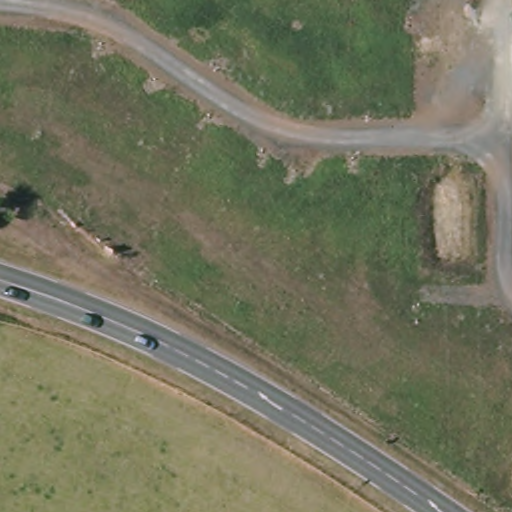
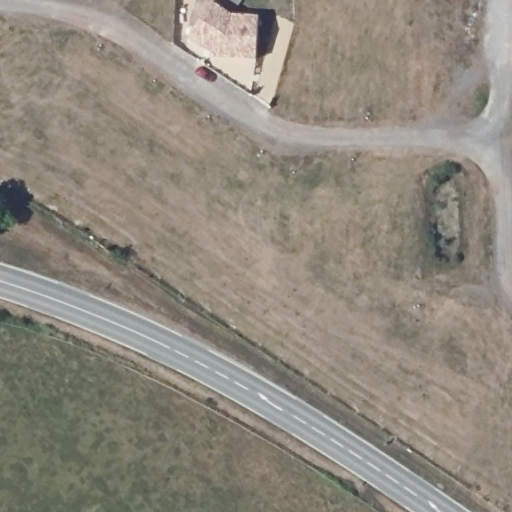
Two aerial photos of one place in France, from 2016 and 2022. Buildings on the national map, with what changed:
new [(218,0),(231,10),(257,11),(255,54),(217,51),(187,31),(209,0),(218,0)]

